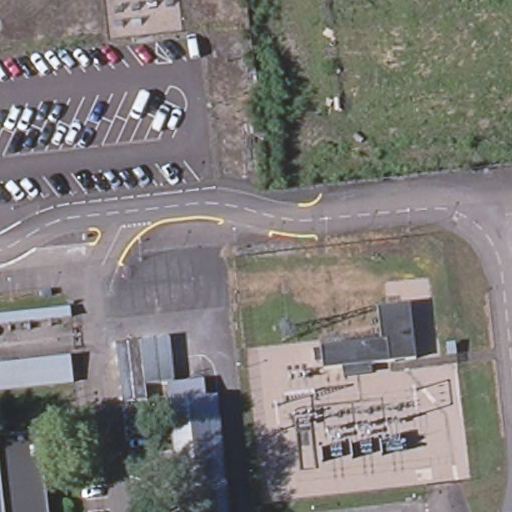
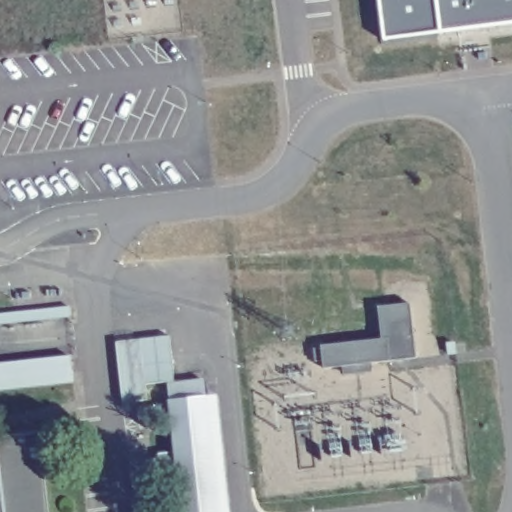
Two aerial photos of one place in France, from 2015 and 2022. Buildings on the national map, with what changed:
new [(512,0),(512,23),(440,31),(386,39),(381,0),(512,0)]
unchanged [(69,310),(0,316),(0,309),(68,302),(69,310)]
unchanged [(412,361),(347,371),(343,349),(407,338),(412,361)]
unchanged [(72,385),(0,392),(0,368),(70,361),(72,385)]
unchanged [(223,512),(186,512),(174,401),(211,398),(223,512)]
unchanged [(35,432),(45,512),(0,512),(0,436),(35,432)]

